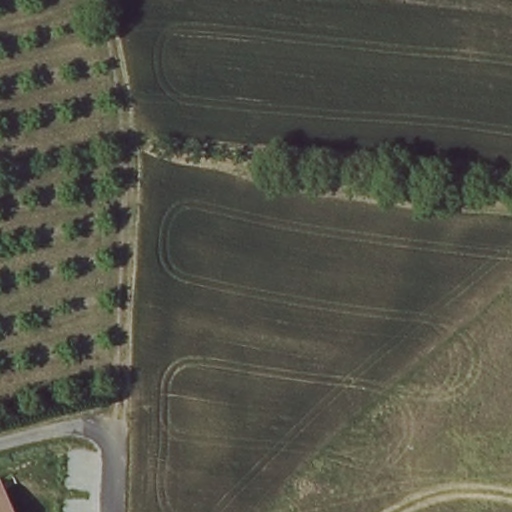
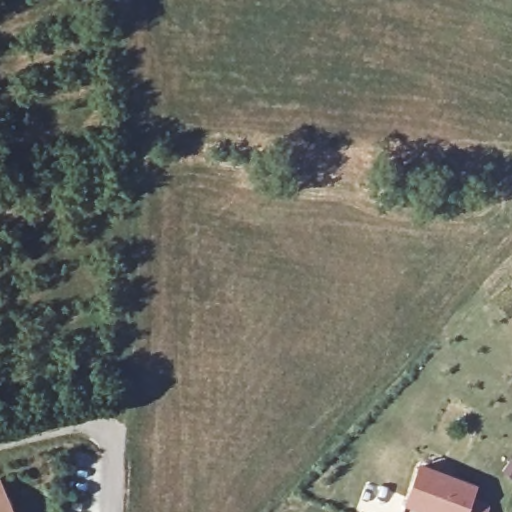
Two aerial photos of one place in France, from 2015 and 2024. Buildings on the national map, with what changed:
new [(475,504),(489,510),(488,512),(426,512),(403,502),(419,465),(480,492),(475,504)]
unchanged [(10,512),(0,512),(0,488),(10,512)]

